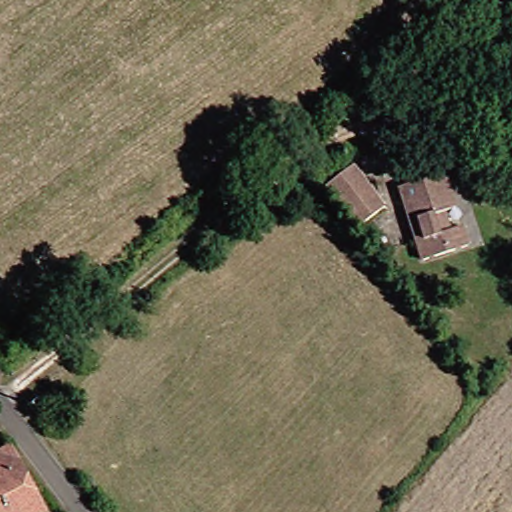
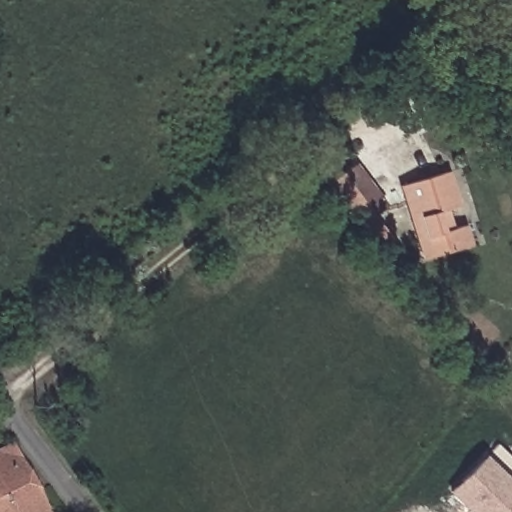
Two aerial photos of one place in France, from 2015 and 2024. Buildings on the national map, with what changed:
unchanged [(386,207),(361,226),(329,185),(354,165),(386,207)]
unchanged [(406,187),(429,180),(451,172),(462,207),(450,211),(456,231),(468,227),(474,247),(429,261),(423,241),(412,206),(406,187)]
unchanged [(0,452),(16,445),(53,512),(0,512),(0,452)]
new [(476,462),(512,498),(512,512),(461,512),(444,496),(476,462)]

